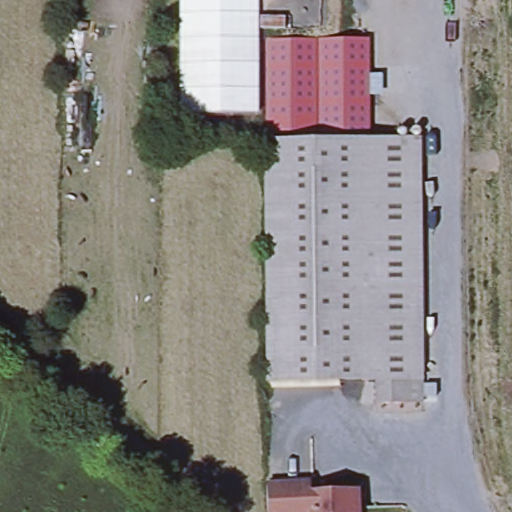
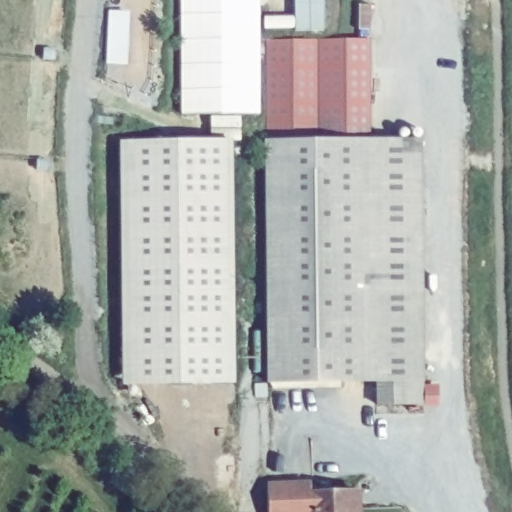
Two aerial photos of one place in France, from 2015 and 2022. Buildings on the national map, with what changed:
new [(181,0),(258,0),(258,113),(181,112),(181,0)]
demolished [(335,37),(256,38),(256,0),(333,0),(335,37)]
new [(324,29),(295,29),(294,0),(324,0),(324,29)]
unchanged [(372,121),(270,122),(270,44),(370,44),(372,121)]
new [(372,142),(269,142),(270,122),(372,121),(372,142)]
new [(234,384),(121,384),(119,140),(231,139),(234,384)]
unchanged [(374,383),(269,383),(269,142),(420,141),(420,382),(374,383)]
unchanged [(420,406),(374,406),(374,383),(420,382),(420,406)]
unchanged [(305,483),(305,493),(356,491),(356,512),(267,512),(267,485),(305,483)]

